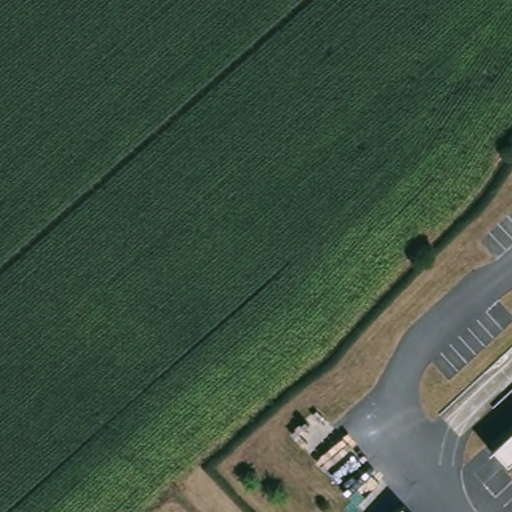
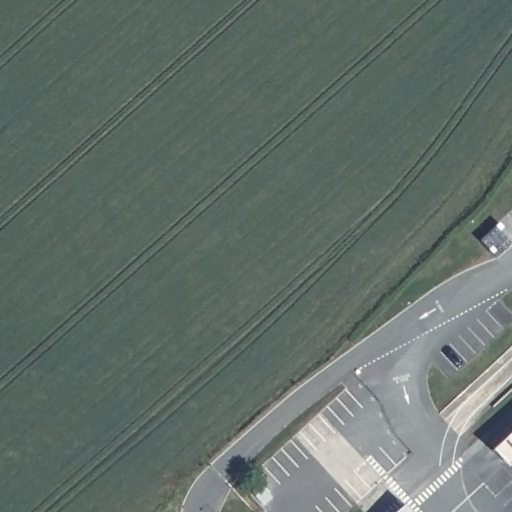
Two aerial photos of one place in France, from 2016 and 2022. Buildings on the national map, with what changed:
unchanged [(496,448),(503,439),(512,431),(512,462),(510,464),(496,448)]
unchanged [(401,506),(407,512),(395,512),(401,506)]

